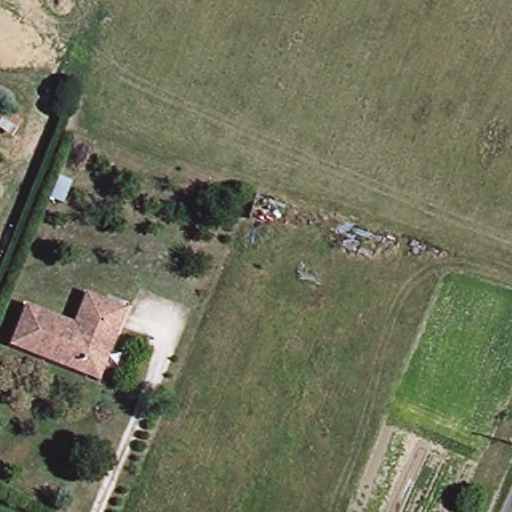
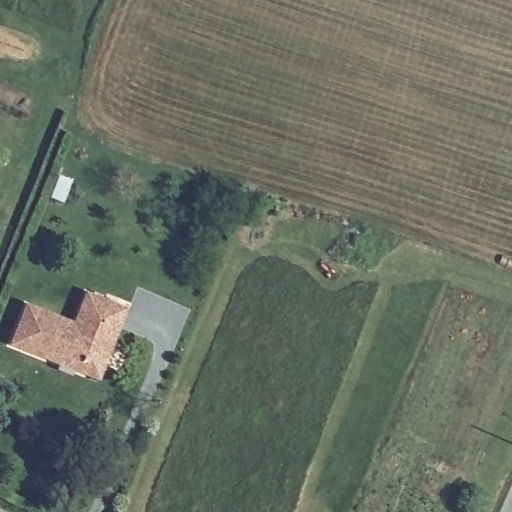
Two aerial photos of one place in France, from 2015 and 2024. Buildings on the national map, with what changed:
unchanged [(81,367),(8,341),(22,302),(70,320),(82,286),(116,298),(124,302),(116,322),(102,357),(97,373),(81,367)]

